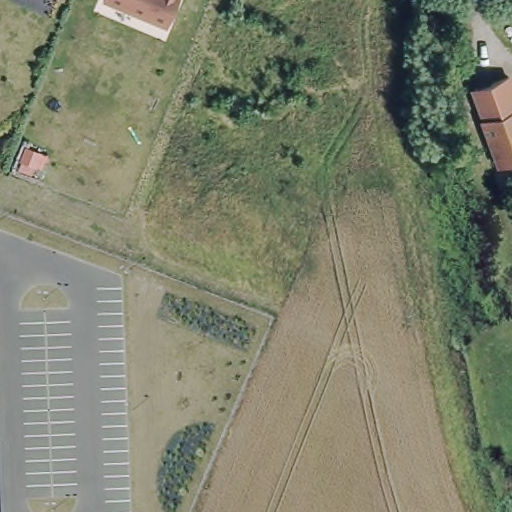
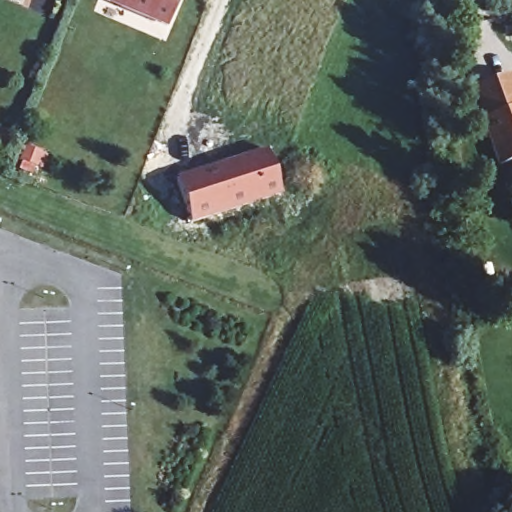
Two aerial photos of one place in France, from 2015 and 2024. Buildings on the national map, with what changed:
unchanged [(163,12),(132,0),(168,0),(163,12)]
unchanged [(498,163),(480,116),(512,105),(512,158),(498,163)]
new [(281,195),(190,224),(174,178),(265,150),(281,195)]

